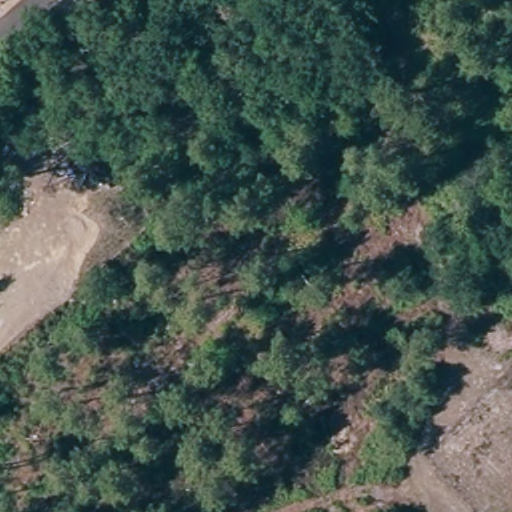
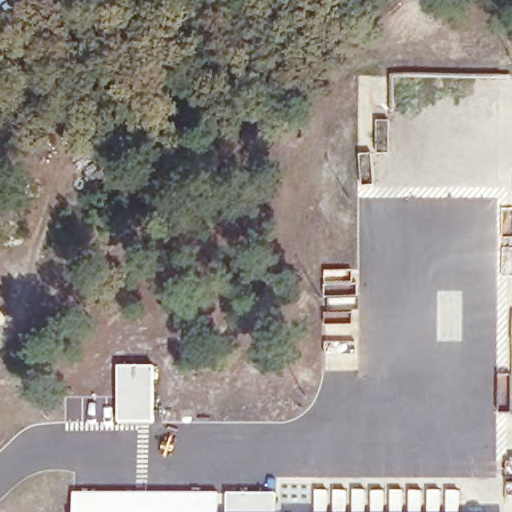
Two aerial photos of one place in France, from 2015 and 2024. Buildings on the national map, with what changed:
new [(117,366),(153,366),(153,422),(117,421),(117,366)]
new [(218,493),(218,512),(73,512),(73,493),(218,493)]
new [(275,493),(275,512),(226,512),(226,493),(275,493)]

